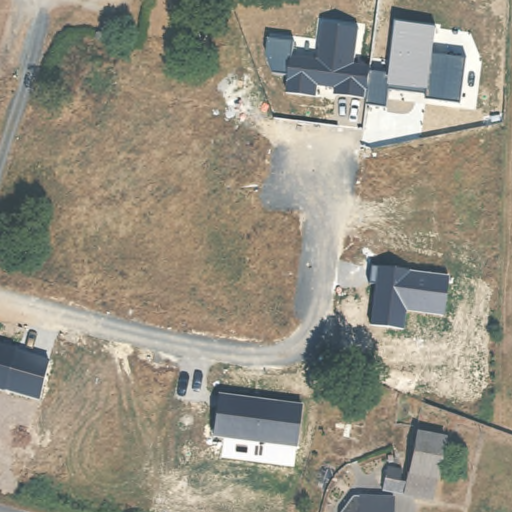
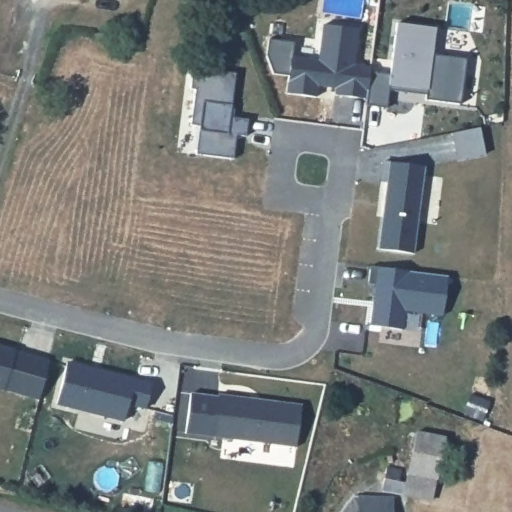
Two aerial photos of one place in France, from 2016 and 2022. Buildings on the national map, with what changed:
unchanged [(425,92),(387,88),(385,109),(363,105),(365,98),(334,95),(335,89),(316,86),(314,96),(285,93),(286,75),(271,73),(266,55),(270,40),(293,44),(291,58),(316,59),(322,25),(359,29),(354,66),(370,68),(369,73),(390,74),(398,23),(435,28),(432,56),(464,58),(459,104),(425,99),(425,92)]
new [(196,154),(199,126),(191,125),(195,90),(192,90),(195,76),(235,73),(229,118),(248,119),(246,138),(235,136),(233,159),(196,154)]
demolished [(47,96),(39,134),(26,131),(35,94),(47,96)]
new [(457,161),(451,133),(481,125),(487,155),(457,161)]
new [(379,249),(387,184),(380,184),(382,162),(425,168),(415,254),(379,249)]
unchanged [(370,325),(372,285),(367,284),(370,269),(446,278),(441,315),(404,311),(403,330),(370,325)]
unchanged [(50,363),(39,401),(0,389),(0,348),(50,363)]
new [(145,410),(126,406),(123,422),(56,404),(67,363),(152,383),(145,410)]
new [(212,438),(185,434),(190,394),(217,396),(212,438)]
unchanged [(302,407),(298,447),(212,438),(217,396),(302,407)]
unchanged [(436,473),(408,467),(414,442),(417,427),(443,433),(442,441),(436,473)]
unchanged [(436,473),(431,495),(382,484),(387,462),(401,465),(400,474),(406,476),(408,467),(436,473)]
unchanged [(393,512),(340,512),(340,510),(354,492),(359,492),(394,493),(393,512)]

